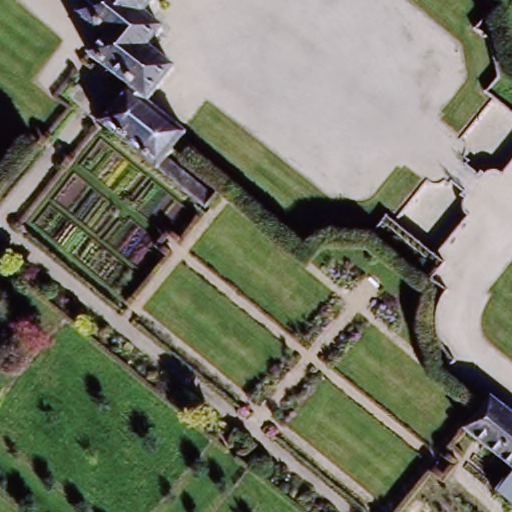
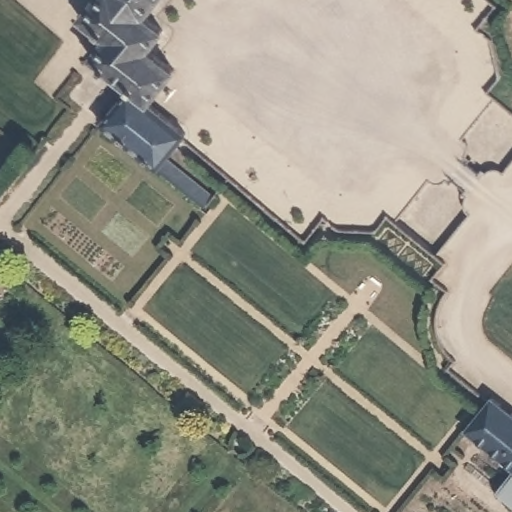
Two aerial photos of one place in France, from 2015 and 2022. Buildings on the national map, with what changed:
unchanged [(89,0),(154,0),(143,12),(162,29),(145,48),(172,70),(146,101),(184,133),(165,156),(212,195),(203,205),(99,120),(127,85),(90,54),(104,36),(77,14),(89,0)]
unchanged [(512,418),(512,471),(465,433),(488,405),(491,401),(512,418)]
unchanged [(497,493),(512,475),(512,504),(497,493)]

